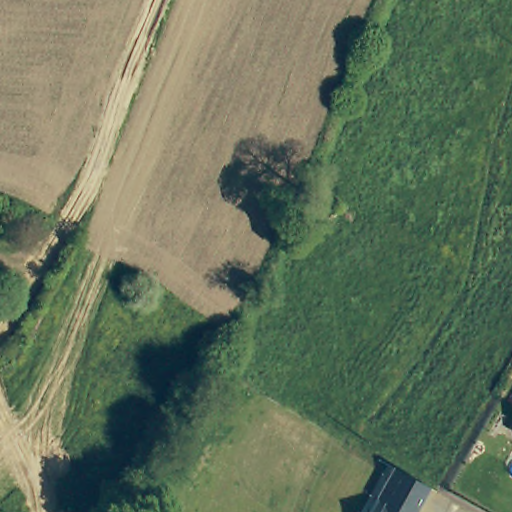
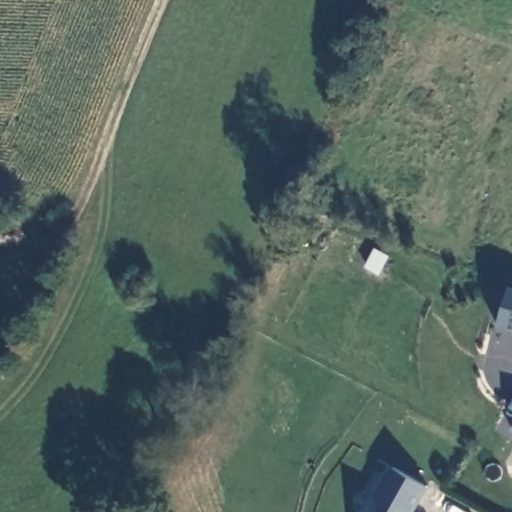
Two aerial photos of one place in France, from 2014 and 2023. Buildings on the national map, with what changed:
new [(512,286),(512,330),(498,325),(510,285),(512,286)]
unchanged [(376,499),(374,497),(391,467),(430,487),(416,512),(369,512),(376,499)]

